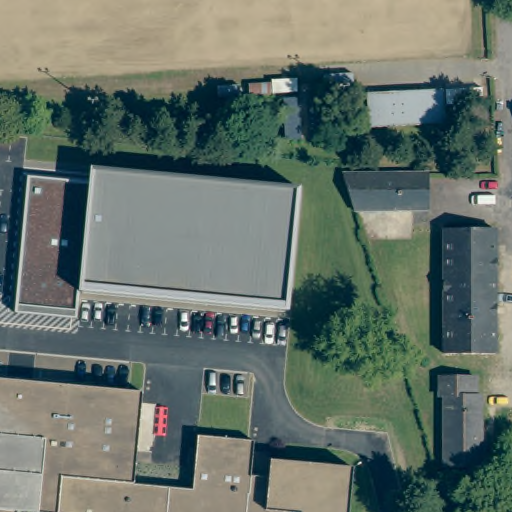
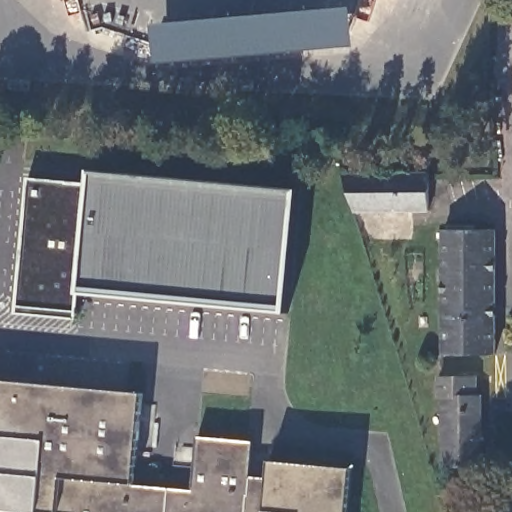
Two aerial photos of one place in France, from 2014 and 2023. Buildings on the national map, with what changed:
new [(156,64),(152,24),(351,8),(355,47),(156,64)]
demolished [(441,96),(477,94),(478,109),(441,111),(441,96)]
demolished [(363,99),(438,96),(440,129),(364,132),(363,99)]
unchanged [(79,294),(76,320),(15,314),(29,179),(92,184),(93,174),(299,190),(287,313),(79,294)]
unchanged [(426,175),(426,204),(426,210),(389,210),(350,210),(342,185),(339,175),(405,175),(426,175)]
unchanged [(444,230),(495,230),(494,355),(444,354),(444,230)]
unchanged [(444,397),(437,397),(438,378),(473,378),(473,397),(479,397),(479,469),(443,468),(444,397)]
unchanged [(139,395),(131,486),(189,492),(194,439),(251,444),(247,478),(265,479),(267,462),(349,470),(346,512),(0,512),(0,382),(139,395)]

